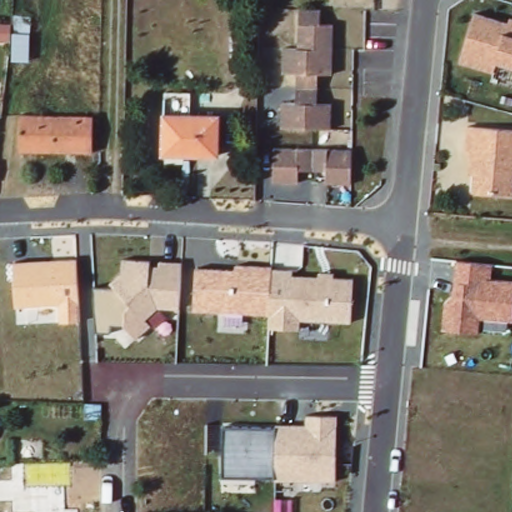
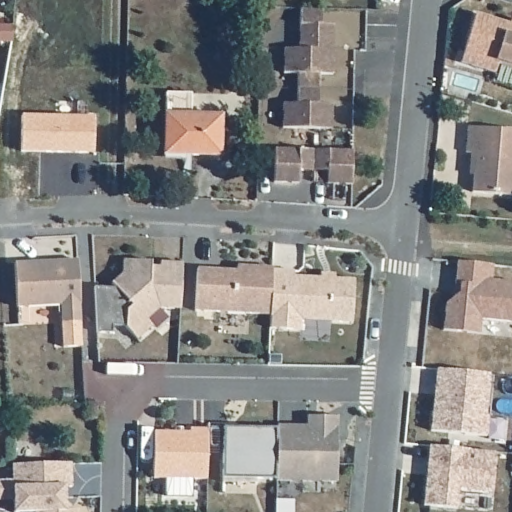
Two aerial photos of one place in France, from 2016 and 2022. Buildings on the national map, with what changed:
unchanged [(332,109),(331,134),(282,133),(283,108),(290,108),(290,79),(283,78),(284,54),(299,54),(300,14),(311,15),(315,15),(322,15),(321,30),(333,30),(332,80),(319,79),(318,109),(332,109)]
unchanged [(497,63),(495,72),(460,62),(475,14),(509,24),(511,18),(512,18),(512,67),(497,63)]
unchanged [(10,39),(0,39),(0,24),(10,24),(10,39)]
unchanged [(94,154),(23,153),(23,115),(93,116),(94,154)]
unchanged [(219,155),(165,154),(166,115),(220,116),(219,155)]
unchanged [(471,153),(466,152),(468,126),(512,130),(512,196),(472,192),(473,175),(469,175),(471,153)]
unchanged [(274,187),(275,154),(352,155),(351,189),(326,189),(327,175),(299,175),(298,188),(274,187)]
unchanged [(81,322),(60,323),(59,305),(15,307),(11,262),(77,258),(81,322)]
unchanged [(179,308),(157,308),(145,319),(151,326),(136,338),(123,325),(110,324),(110,332),(94,331),(95,287),(114,288),(109,282),(120,273),(121,260),(149,260),(149,267),(159,268),(159,262),(181,263),(179,308)]
unchanged [(445,303),(453,296),(456,261),(492,265),(491,278),(512,280),(512,323),(480,320),(478,333),(443,329),(445,303)]
unchanged [(351,323),(300,320),(300,330),(268,328),(268,315),(192,310),(195,268),(235,270),(235,265),(272,267),(273,270),(295,271),(295,275),(318,277),(318,273),(335,274),(335,278),(353,280),(351,323)]
new [(435,369),(488,372),(485,416),(487,416),(485,435),(430,429),(435,369)]
unchanged [(336,482),(221,480),(222,428),(275,429),(275,425),(305,425),(305,415),(338,417),(336,482)]
new [(152,432),(189,432),(189,428),(205,429),(205,478),(151,478),(152,432)]
new [(495,451),(492,493),(458,491),(457,508),(422,506),(428,445),(495,451)]
new [(11,466),(49,464),(70,463),(70,486),(64,486),(64,510),(77,510),(77,512),(34,512),(12,512),(12,500),(0,501),(0,483),(12,482),(11,466)]
new [(275,499),(291,499),(291,512),(274,512),(275,499)]

